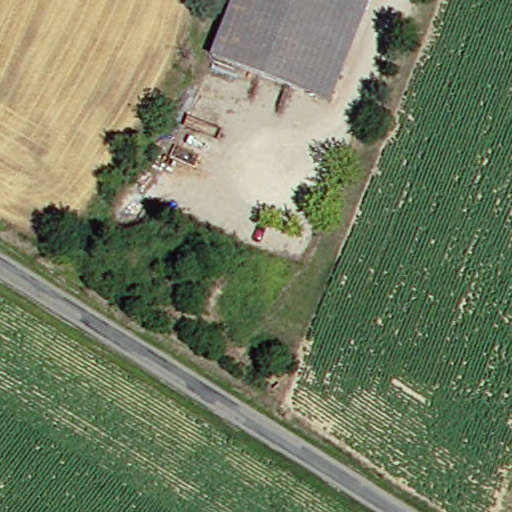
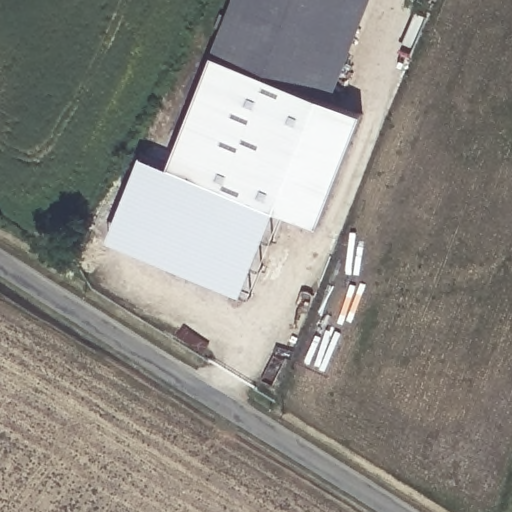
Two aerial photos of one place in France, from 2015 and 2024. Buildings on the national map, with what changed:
unchanged [(229,0),(346,0),(313,96),(208,62),(229,0)]
unchanged [(346,0),(366,0),(332,104),(313,96),(346,0)]
new [(313,96),(332,104),(360,114),(317,226),(169,167),(212,63),(313,96)]
new [(109,237),(141,156),(169,167),(277,210),(244,293),(109,237)]

